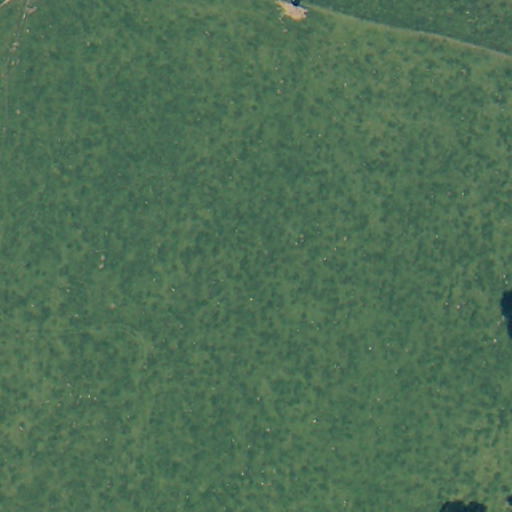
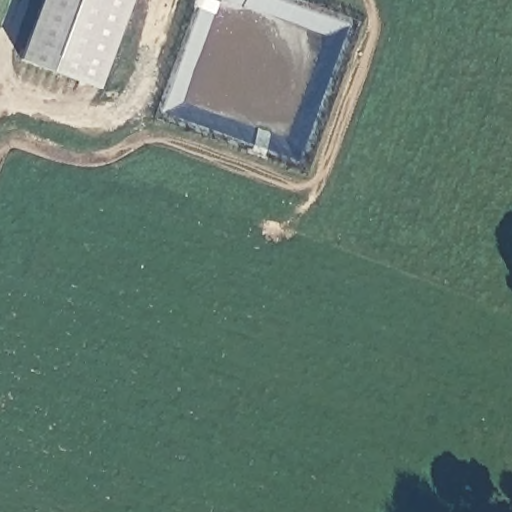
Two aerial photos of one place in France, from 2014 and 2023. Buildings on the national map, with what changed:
new [(19,57),(40,0),(132,0),(98,87),(19,57)]

